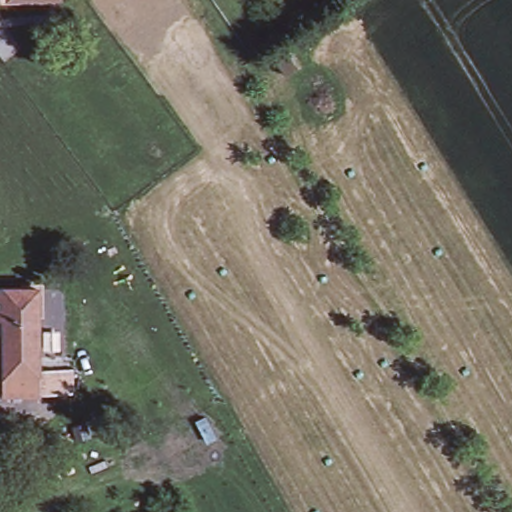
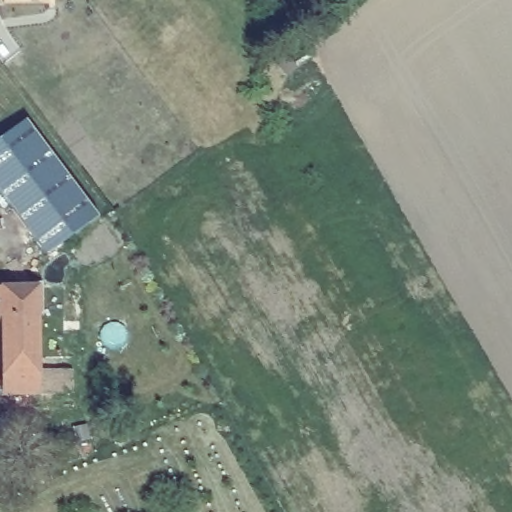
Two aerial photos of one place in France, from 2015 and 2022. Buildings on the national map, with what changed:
demolished [(100,9),(114,0),(152,0),(155,5),(114,31),(100,9)]
new [(101,218),(48,257),(0,191),(0,142),(30,120),(101,218)]
unchanged [(40,349),(5,350),(4,329),(0,329),(0,289),(39,288),(40,349)]
unchanged [(70,392),(40,393),(7,393),(5,350),(40,349),(40,370),(70,370),(70,392)]

